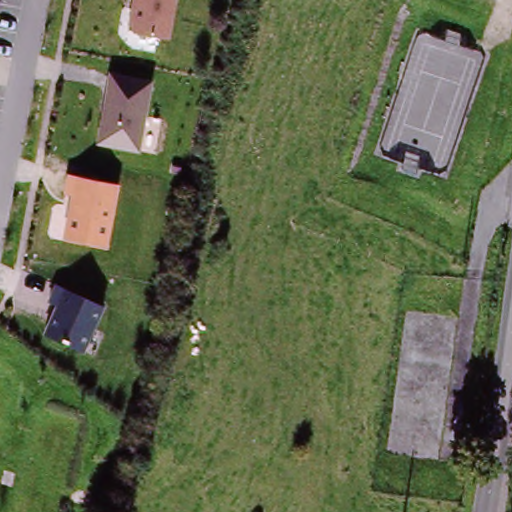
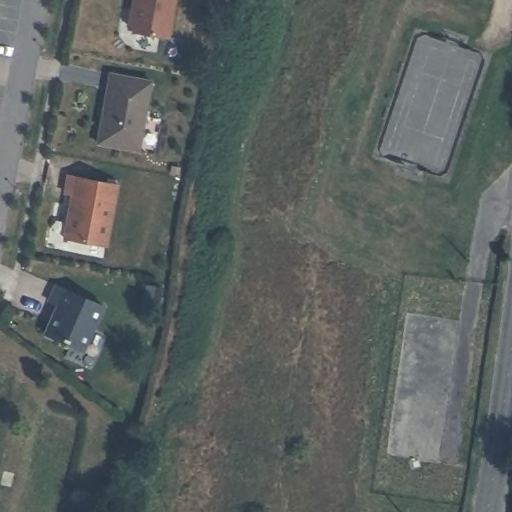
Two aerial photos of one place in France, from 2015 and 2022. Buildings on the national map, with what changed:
unchanged [(132,0),(172,0),(166,38),(127,31),(132,0)]
unchanged [(153,81),(140,152),(96,143),(110,73),(153,81)]
unchanged [(116,187),(105,246),(63,239),(69,196),(63,195),(65,177),(116,187)]
unchanged [(100,308),(83,352),(40,333),(49,308),(43,303),(49,285),(100,308)]

